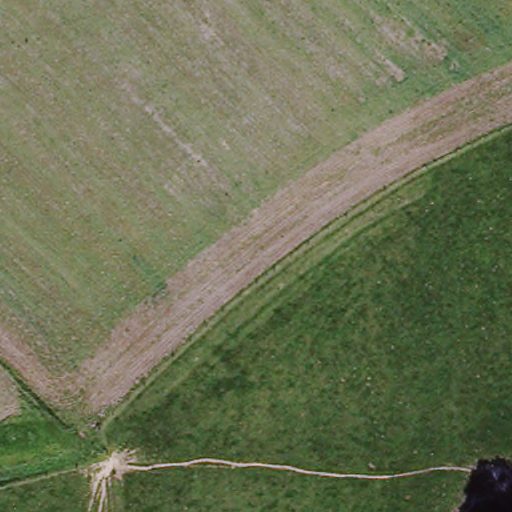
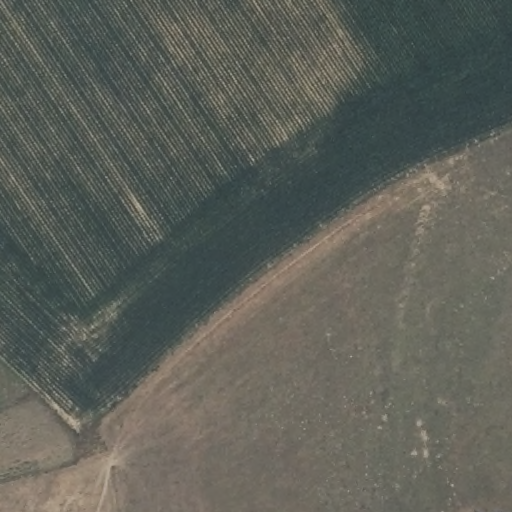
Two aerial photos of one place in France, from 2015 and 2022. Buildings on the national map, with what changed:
[]

